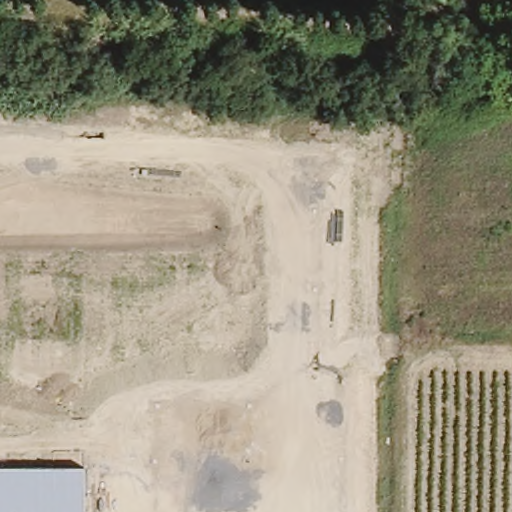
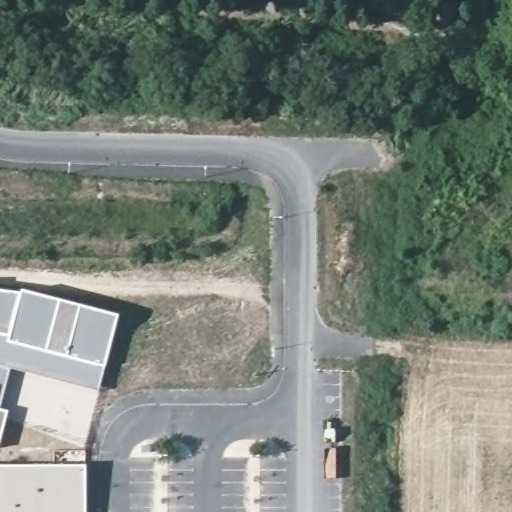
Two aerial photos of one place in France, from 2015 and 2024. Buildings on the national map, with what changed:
new [(21,291),(118,316),(98,392),(10,370),(0,410),(0,292),(20,295),(21,291)]
new [(0,444),(0,410),(8,412),(0,444)]
unchanged [(87,512),(0,512),(0,466),(86,465),(87,512)]

